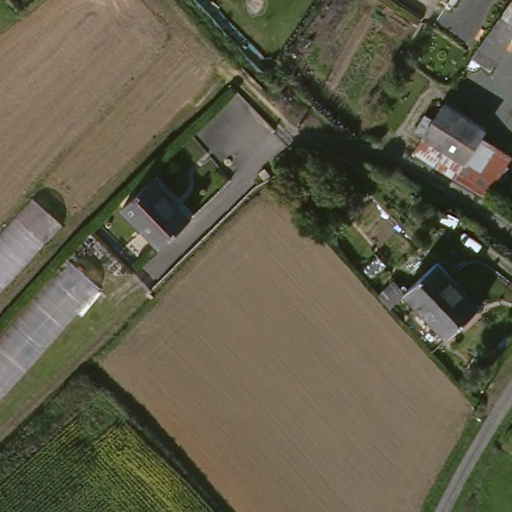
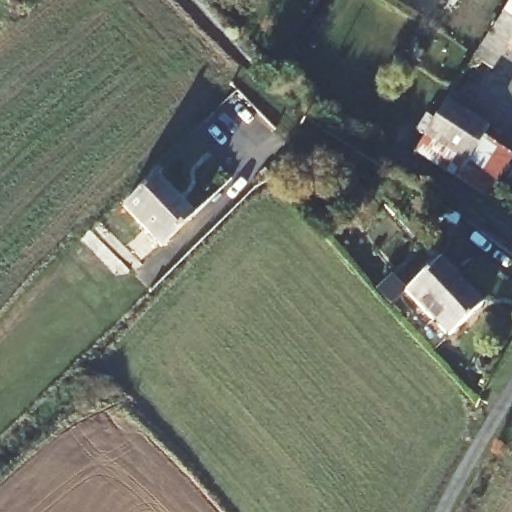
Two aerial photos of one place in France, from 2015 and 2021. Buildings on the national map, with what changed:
unchanged [(512,47),(500,63),(483,52),(510,13),(512,11),(512,47)]
unchanged [(512,167),(496,191),(424,144),(433,131),(424,125),(435,108),(444,114),(456,96),(496,123),(491,130),(512,144),(512,167)]
unchanged [(153,177),(191,217),(160,246),(122,207),(153,177)]
demolished [(67,221),(0,296),(0,240),(39,196),(67,221)]
demolished [(75,258),(104,282),(0,400),(0,338),(75,258)]
unchanged [(480,310),(448,341),(406,296),(439,265),(480,310)]
unchanged [(378,298),(394,283),(406,296),(390,311),(378,298)]

